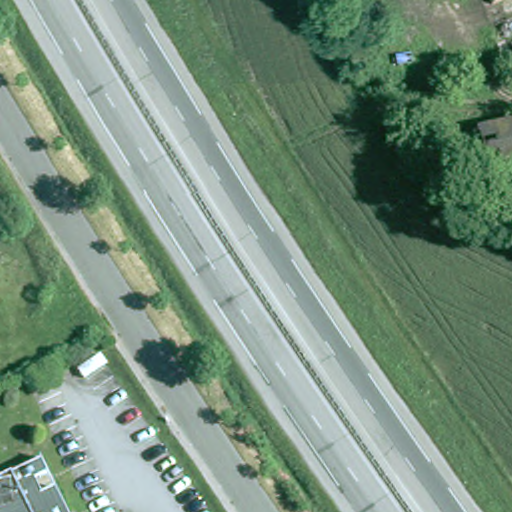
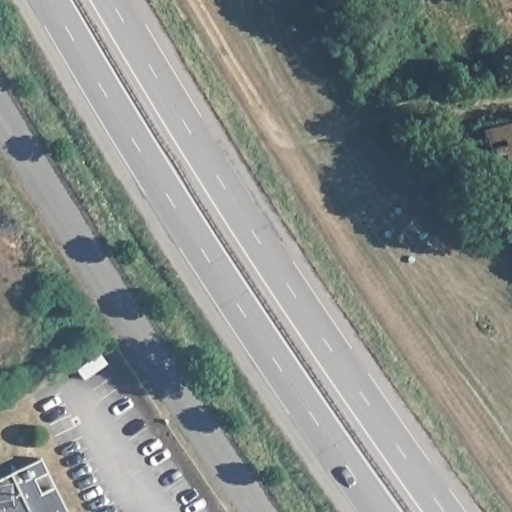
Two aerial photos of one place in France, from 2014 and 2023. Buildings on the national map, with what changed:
unchanged [(489,147),(512,141),(512,180),(499,184),(489,147)]
unchanged [(53,480),(35,488),(42,502),(57,495),(66,512),(0,512),(0,485),(45,464),(53,480)]

